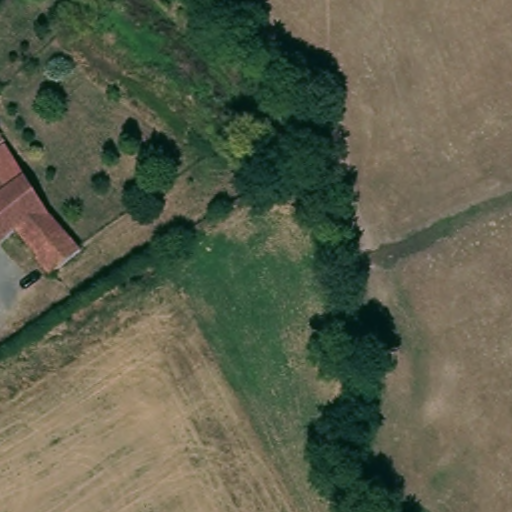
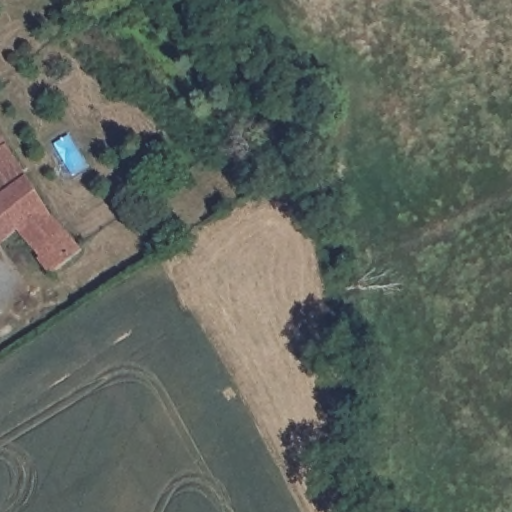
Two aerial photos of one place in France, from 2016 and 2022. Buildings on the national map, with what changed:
unchanged [(14,230),(0,242),(0,139),(45,210),(80,249),(51,272),(14,230)]

